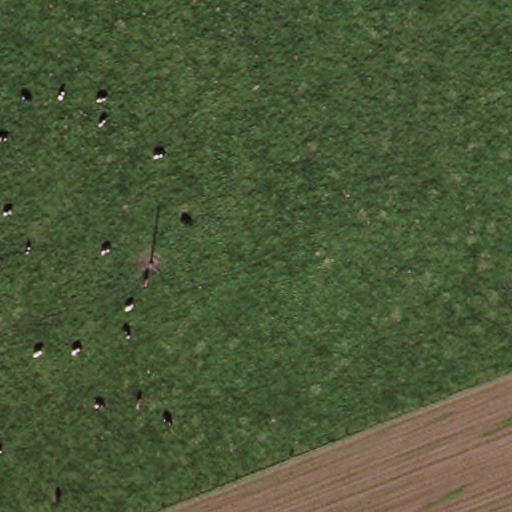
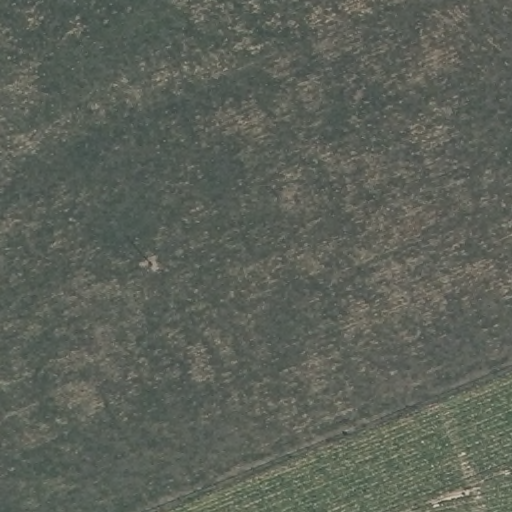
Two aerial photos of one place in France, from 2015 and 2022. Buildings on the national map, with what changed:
[]

